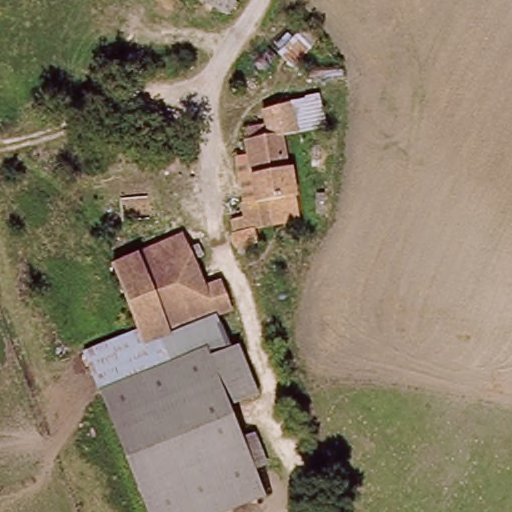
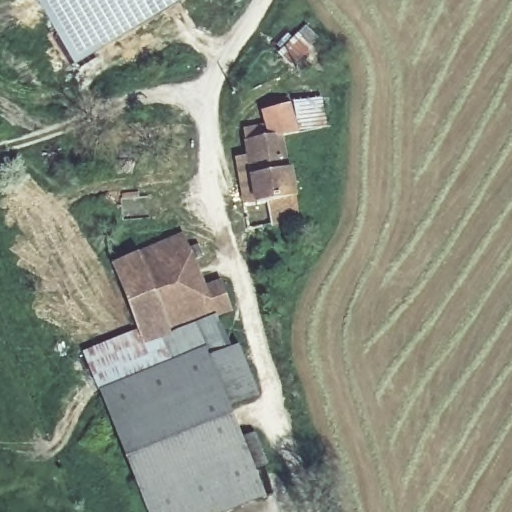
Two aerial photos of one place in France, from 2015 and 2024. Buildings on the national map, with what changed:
new [(37,0),(183,0),(76,65),(37,0)]
demolished [(218,0),(225,0),(223,3),(218,0)]
unchanged [(236,156),(246,154),(242,128),(265,124),(263,107),(322,94),(330,128),(288,136),(294,167),(300,194),(303,220),(261,228),(263,246),(239,252),(232,218),(247,214),(236,156)]
unchanged [(84,350),(138,328),(113,262),(190,232),(209,282),(223,277),(236,310),(225,315),(239,350),(210,363),(204,350),(164,366),(101,393),(84,350)]
unchanged [(101,393),(164,366),(204,350),(210,363),(239,350),(256,396),(231,411),(264,497),(229,512),(142,512),(94,397),(101,393)]

